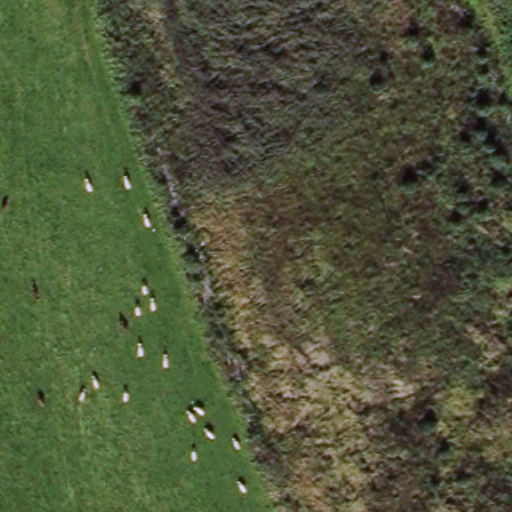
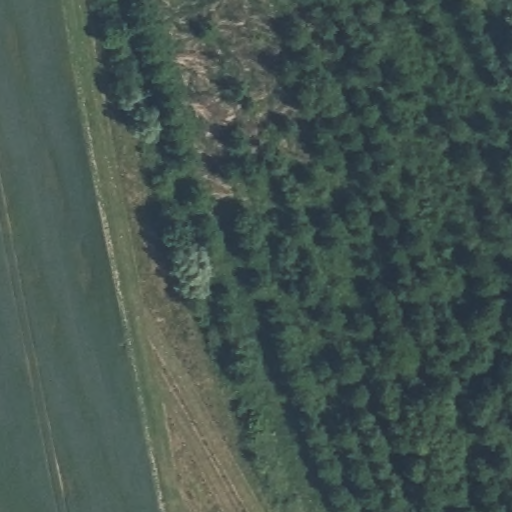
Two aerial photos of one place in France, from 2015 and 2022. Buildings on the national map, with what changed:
[]

